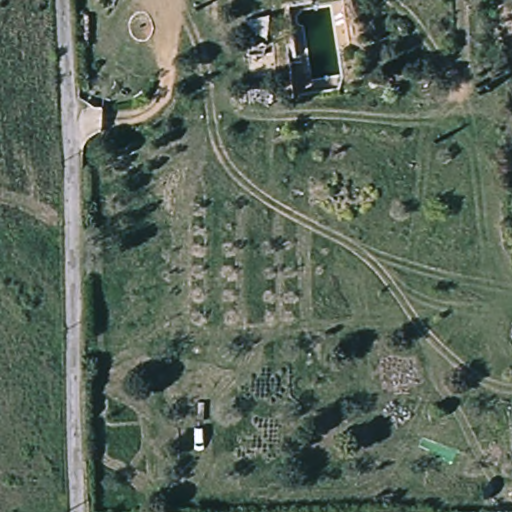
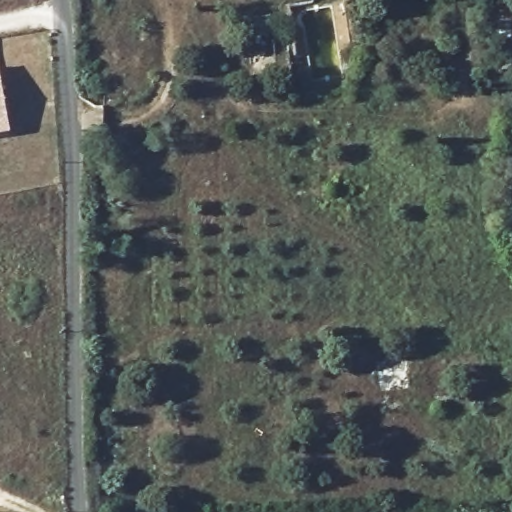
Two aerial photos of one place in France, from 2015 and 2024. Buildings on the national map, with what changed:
new [(12,133),(0,134),(0,71),(12,133)]

